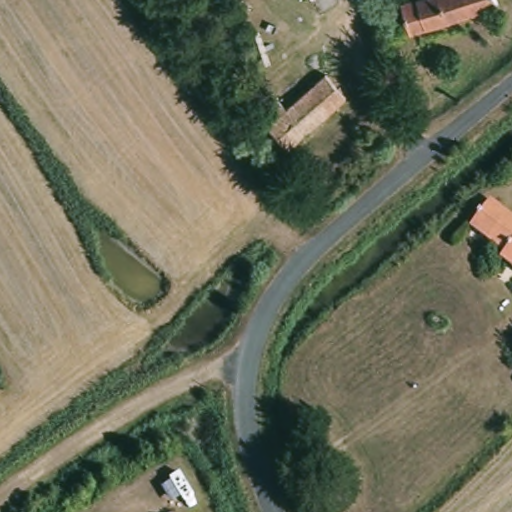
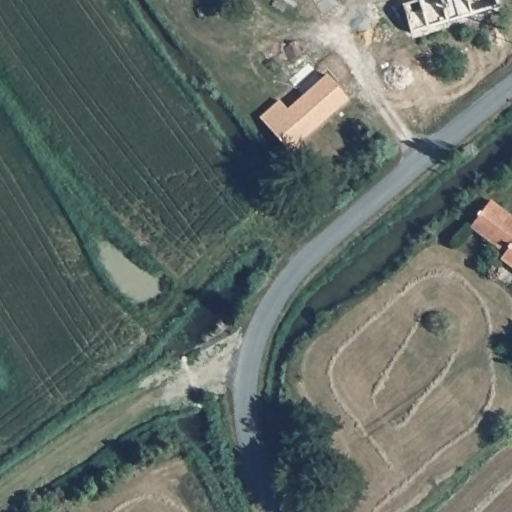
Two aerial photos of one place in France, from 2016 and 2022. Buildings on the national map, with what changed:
unchanged [(502,14),(411,44),(401,9),(429,0),(498,0),(502,14)]
unchanged [(353,99),(291,153),(270,125),(278,119),(272,107),(287,98),(295,109),(333,75),(353,99)]
unchanged [(512,277),(496,262),(501,256),(471,226),(494,205),(512,221),(512,277)]

